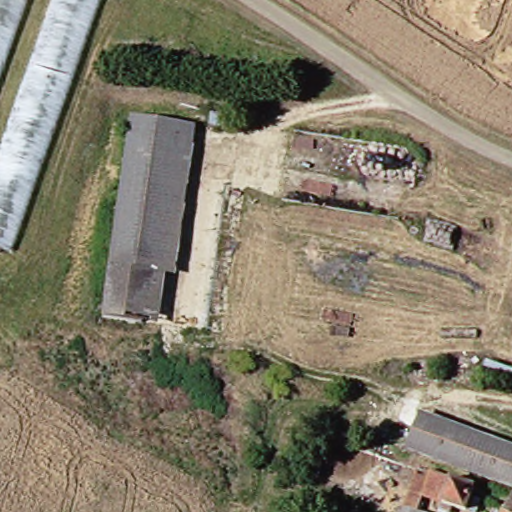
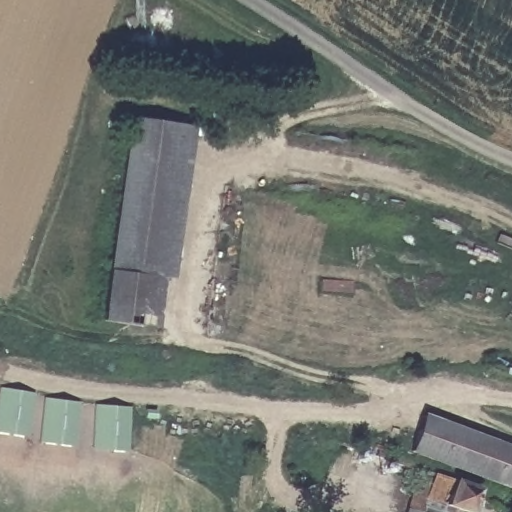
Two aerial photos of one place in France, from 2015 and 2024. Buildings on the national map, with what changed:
demolished [(0,88),(0,0),(31,0),(0,88)]
demolished [(16,254),(0,248),(0,157),(55,0),(102,0),(16,254)]
unchanged [(94,316),(139,119),(188,131),(156,271),(147,269),(134,326),(113,321),(94,316)]
new [(22,437),(0,434),(0,390),(29,396),(22,437)]
new [(81,405),(76,446),(40,443),(46,398),(81,405)]
new [(96,406),(131,413),(124,453),(89,449),(96,406)]
unchanged [(419,457),(408,453),(422,414),(440,421),(512,447),(512,492),(419,457)]
unchanged [(459,512),(442,505),(406,490),(416,465),(454,481),(479,492),(470,512),(459,512)]
unchanged [(429,512),(407,512),(410,504),(429,512)]

